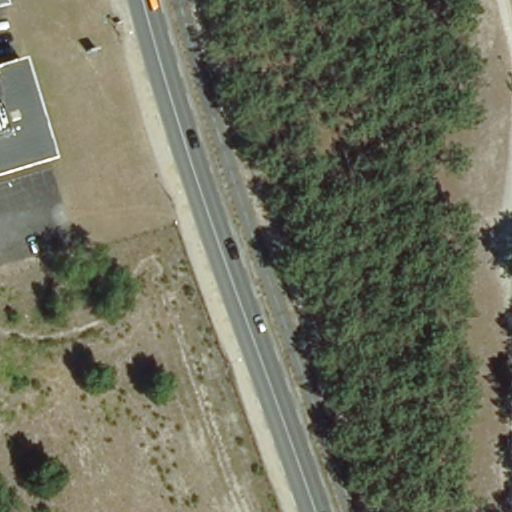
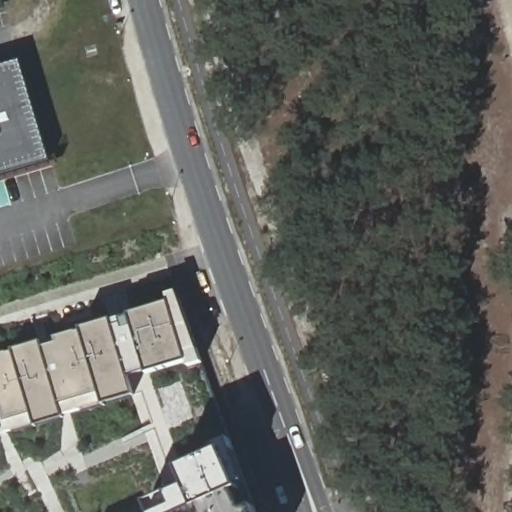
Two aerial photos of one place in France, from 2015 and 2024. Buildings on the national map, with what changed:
unchanged [(0,170),(0,62),(19,57),(27,82),(38,122),(41,131),(49,156),(0,170)]
new [(256,512),(151,512),(146,502),(192,480),(167,392),(0,440),(0,346),(178,295),(256,512)]

